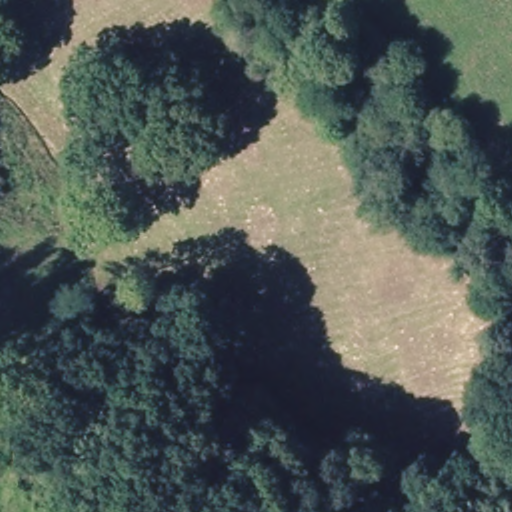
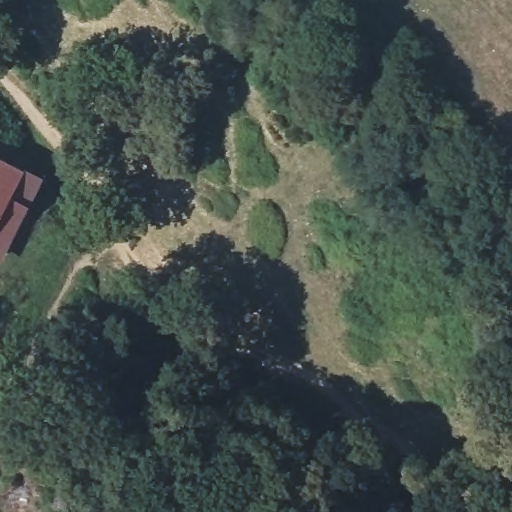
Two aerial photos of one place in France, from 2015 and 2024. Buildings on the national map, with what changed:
new [(22,171),(44,179),(0,263),(0,160),(22,171)]

